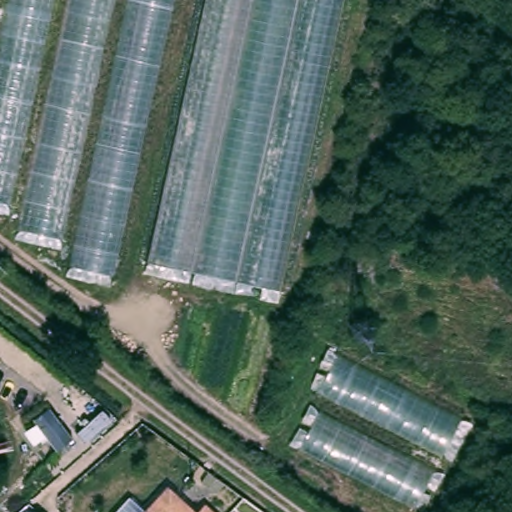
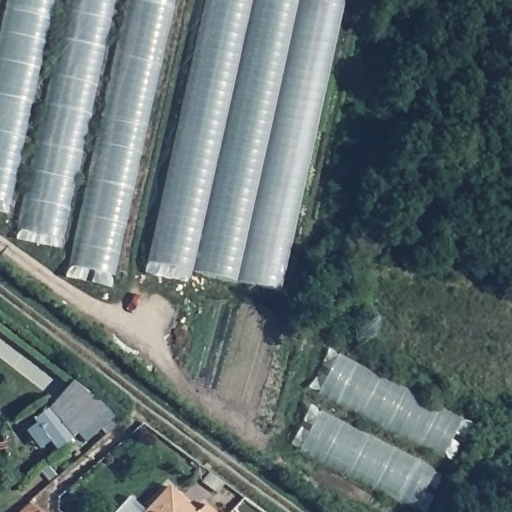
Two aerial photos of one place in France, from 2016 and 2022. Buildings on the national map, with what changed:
unchanged [(16,230),(22,205),(0,201),(0,0),(178,0),(115,277),(77,270),(82,237),(16,230)]
unchanged [(342,0),(280,293),(145,264),(204,0),(342,0)]
unchanged [(322,397),(312,392),(337,350),(470,422),(420,509),(295,446),(322,397)]
new [(49,408),(72,382),(114,416),(85,442),(78,434),(56,450),(50,441),(39,449),(26,431),(35,424),(33,420),(49,408)]
unchanged [(193,512),(143,512),(167,488),(193,512)]
unchanged [(206,506),(212,512),(200,512),(206,506)]

